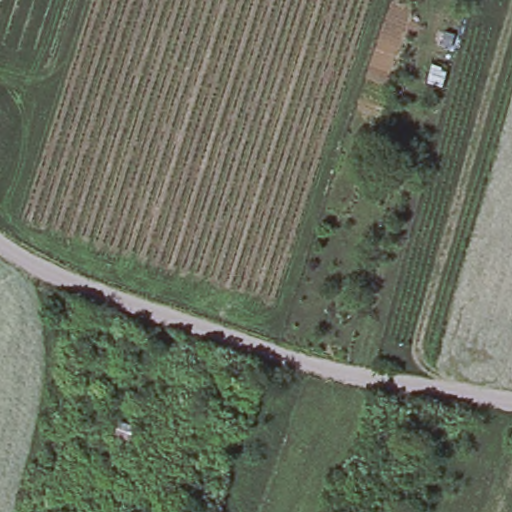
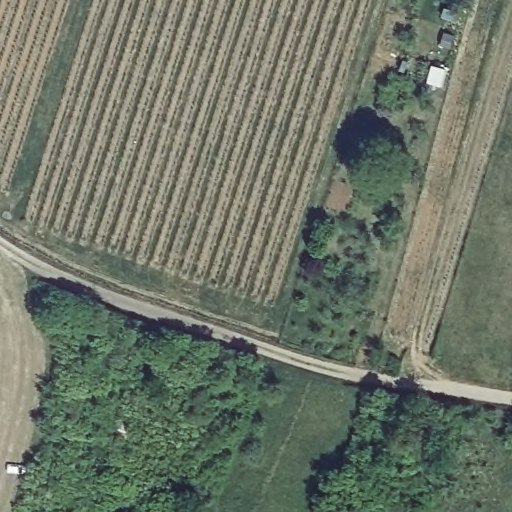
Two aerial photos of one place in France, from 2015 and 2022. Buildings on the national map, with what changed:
unchanged [(434,60),(452,66),(444,87),(427,79),(434,60)]
unchanged [(139,420),(126,456),(104,450),(117,415),(139,420)]

